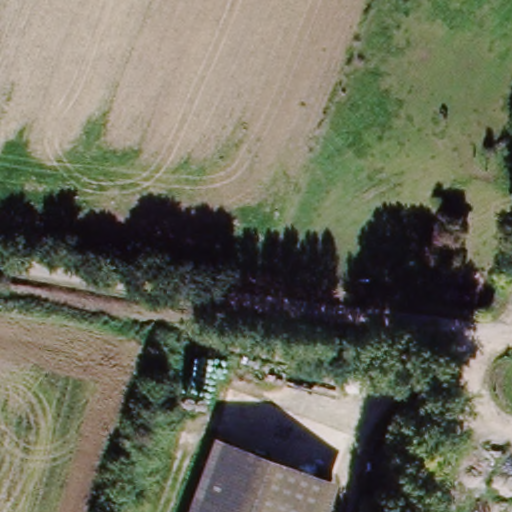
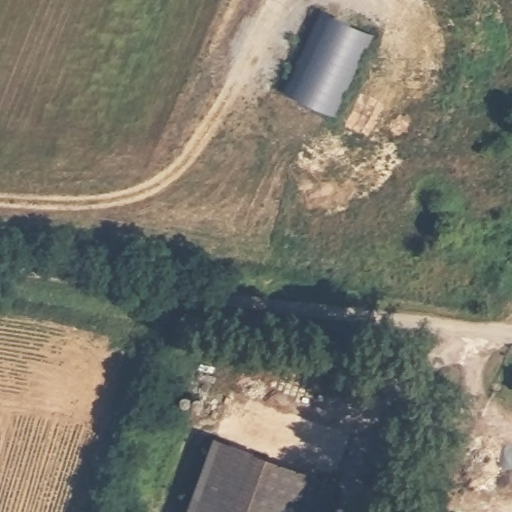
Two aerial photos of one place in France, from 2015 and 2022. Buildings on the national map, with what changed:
new [(372,33),(332,116),(282,92),(322,12),(372,33)]
unchanged [(324,512),(184,512),(210,441),(334,485),(324,512)]

